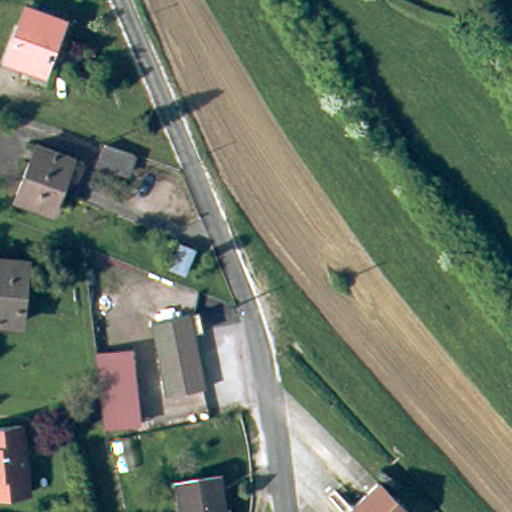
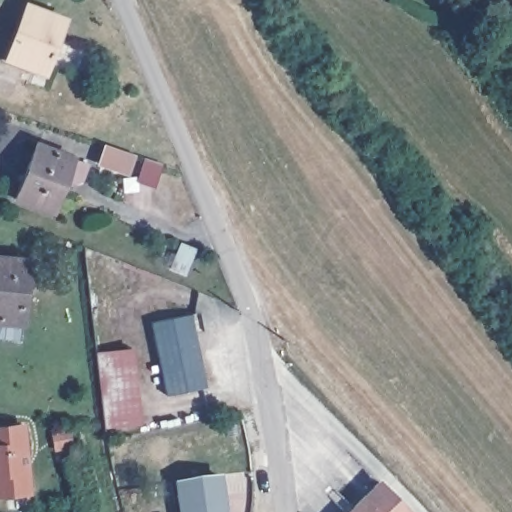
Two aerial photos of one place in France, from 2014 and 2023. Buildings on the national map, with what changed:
unchanged [(24,3),(64,18),(44,71),(4,57),(24,3)]
unchanged [(15,195),(35,141),(72,155),(84,160),(79,176),(62,181),(52,209),(15,195)]
unchanged [(124,173),(96,164),(102,144),(130,155),(124,173)]
unchanged [(175,239),(190,244),(180,268),(165,262),(175,239)]
unchanged [(20,320),(0,318),(0,257),(27,261),(20,320)]
unchanged [(191,309),(211,381),(172,391),(152,319),(191,309)]
unchanged [(100,352),(132,350),(140,422),(106,427),(100,352)]
unchanged [(31,494),(0,496),(0,430),(22,428),(31,494)]
unchanged [(222,479),(227,512),(183,512),(179,485),(222,479)]
unchanged [(405,512),(342,512),(330,499),(335,493),(352,509),(376,484),(405,512)]

